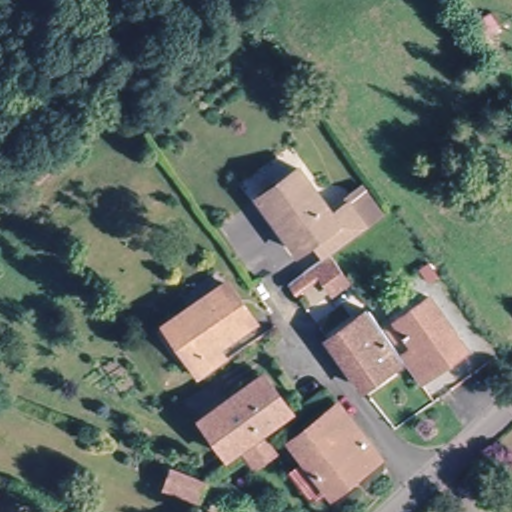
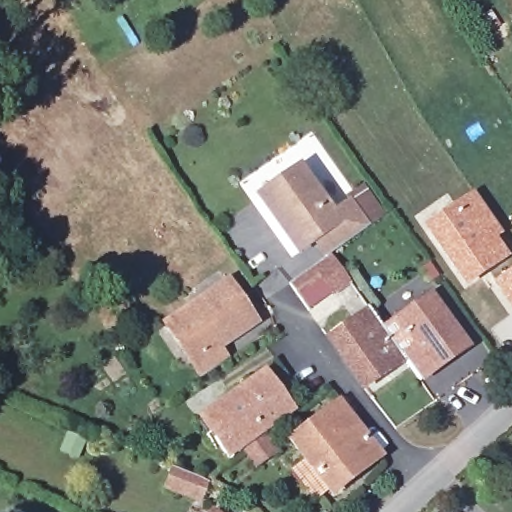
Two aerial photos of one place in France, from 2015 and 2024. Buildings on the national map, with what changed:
unchanged [(323,291),(304,262),(317,253),(306,238),(291,249),(254,196),(294,168),(323,213),(342,202),(359,225),(322,250),(341,279),(323,291)]
new [(474,193),(503,233),(498,238),(512,258),(488,274),(465,290),(423,229),(474,193)]
new [(512,258),(512,257),(512,308),(488,274),(512,258)]
unchanged [(188,364),(196,360),(168,320),(227,283),(252,323),(217,346),(221,352),(227,362),(200,381),(193,371),(188,364)]
unchanged [(411,345),(392,319),(425,295),(456,342),(424,366),(428,370),(414,381),(397,356),(411,345)]
unchanged [(357,385),(340,362),(343,359),(327,335),(365,310),(397,356),(357,385)]
unchanged [(218,411),(262,381),(287,419),(230,461),(218,444),(203,423),(218,411)]
unchanged [(339,410),(376,460),(334,491),(328,495),(290,445),(297,440),(339,410)]
unchanged [(201,508),(160,496),(167,468),(210,482),(201,508)]

